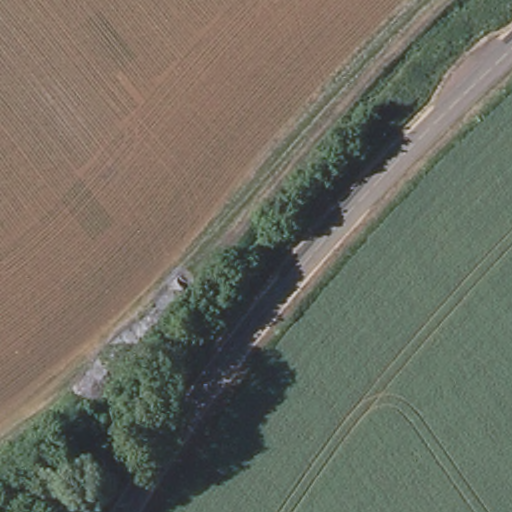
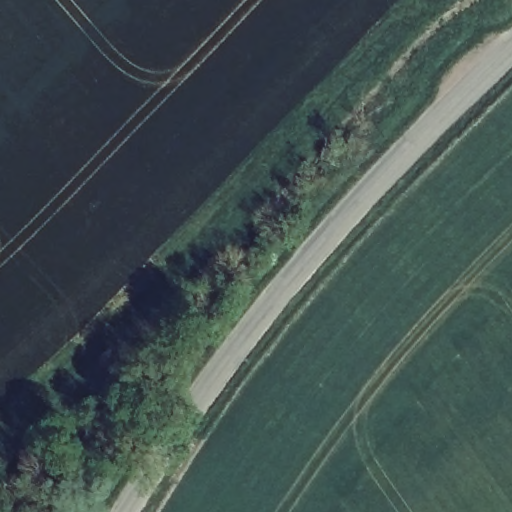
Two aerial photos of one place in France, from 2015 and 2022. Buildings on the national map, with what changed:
[]

